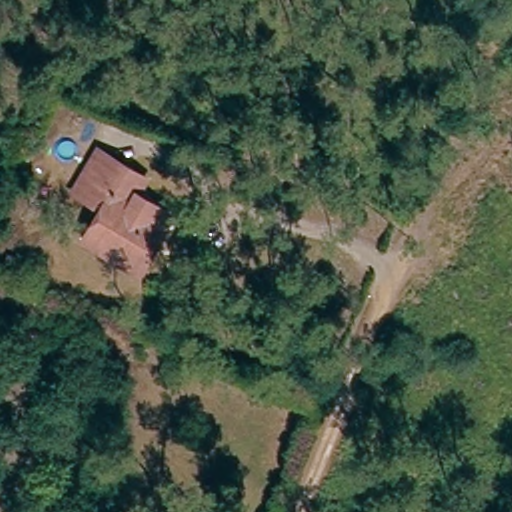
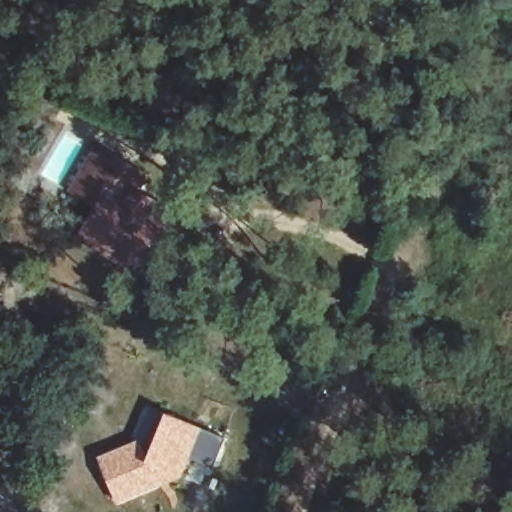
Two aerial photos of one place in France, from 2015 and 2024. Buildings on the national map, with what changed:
unchanged [(143,246),(132,268),(83,241),(101,206),(78,193),(101,151),(130,169),(148,179),(138,194),(133,204),(166,222),(143,246)]
new [(145,435),(151,440),(163,411),(201,427),(225,438),(213,468),(189,459),(180,480),(115,505),(95,456),(137,438),(145,435)]

